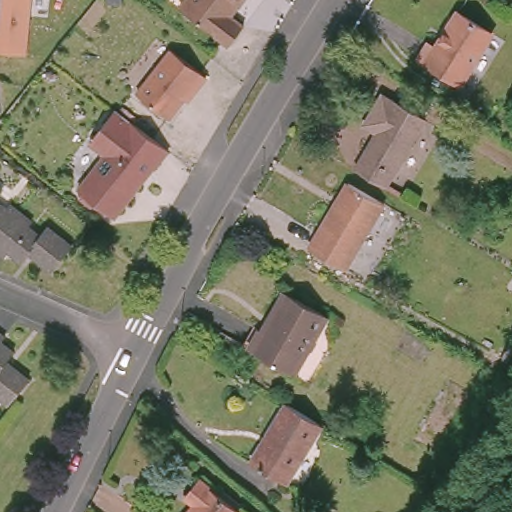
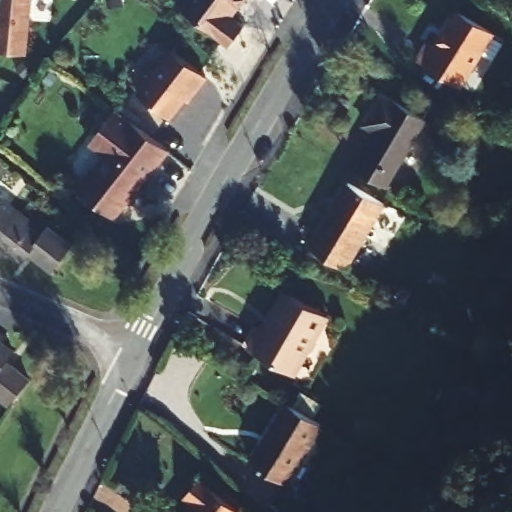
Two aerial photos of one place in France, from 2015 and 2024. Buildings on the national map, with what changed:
unchanged [(27,54),(0,52),(0,0),(32,0),(27,54)]
unchanged [(230,17),(242,26),(227,46),(177,7),(183,0),(243,0),(230,17)]
unchanged [(425,45),(432,50),(457,15),(490,36),(459,85),(457,88),(415,60),(417,56),(425,45)]
unchanged [(169,48),(206,75),(195,89),(190,86),(167,116),(135,91),(169,48)]
unchanged [(383,89),(427,115),(412,138),(370,111),(383,89)]
unchanged [(156,167),(154,165),(115,215),(97,202),(92,202),(82,195),(82,190),(79,187),(106,152),(90,140),(94,136),(117,107),(170,148),(156,167)]
unchanged [(387,180),(357,162),(380,125),(366,116),(370,111),(412,138),(387,180)]
unchanged [(0,187),(0,173),(7,178),(0,187)]
unchanged [(347,181),(381,202),(365,230),(330,208),(347,181)]
unchanged [(15,193),(25,202),(37,212),(34,216),(44,225),(52,216),(76,235),(55,260),(33,243),(25,253),(12,242),(8,246),(0,240),(0,188),(11,197),(15,193)]
unchanged [(308,245),(330,208),(365,230),(343,266),(308,245)]
unchanged [(262,329),(268,333),(279,316),(274,313),(287,292),(325,314),(313,335),(317,337),(318,343),(315,349),(309,353),(304,353),(292,375),(249,350),(262,329)]
unchanged [(4,335),(17,346),(9,354),(32,373),(12,398),(0,389),(0,324),(8,330),(4,335)]
unchanged [(282,478),(250,457),(283,399),(289,403),(317,419),(282,478)]
unchanged [(183,498),(197,481),(215,494),(219,488),(242,506),(238,512),(188,512),(194,506),(183,498)]

